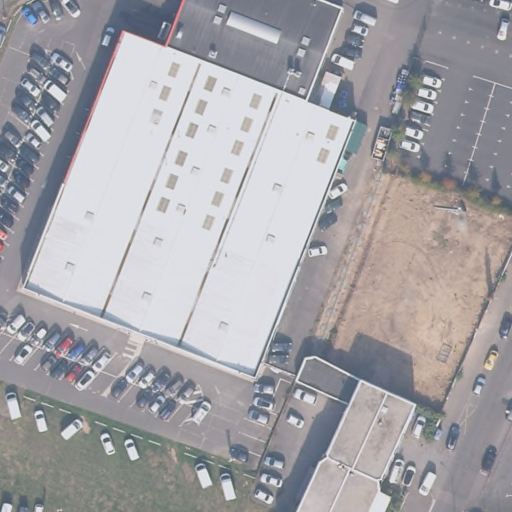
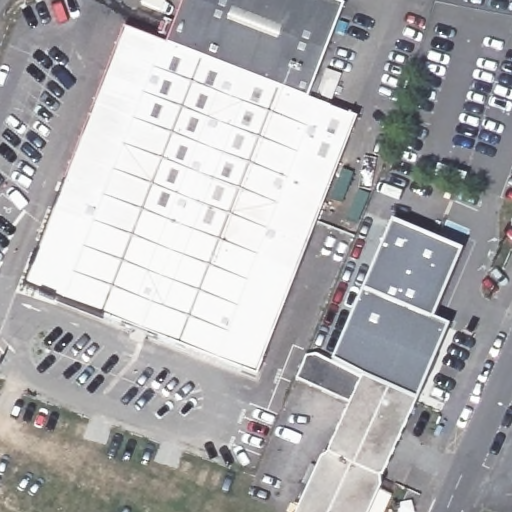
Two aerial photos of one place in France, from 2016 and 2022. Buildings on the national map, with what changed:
unchanged [(127,28),(169,46),(189,0),(315,0),(338,10),(348,15),(308,107),(357,127),(248,379),(183,351),(19,278),(127,28)]
demolished [(498,94),(499,94),(511,101),(503,117),(512,121),(512,168),(480,152),(489,133),(481,129),(467,121),(484,87),(498,94)]
demolished [(365,223),(367,237),(360,251),(343,244),(354,219),(365,223)]
new [(391,225),(461,253),(431,325),(446,330),(414,400),(333,365),(391,225)]
demolished [(340,252),(378,267),(372,278),(335,264),(340,252)]
demolished [(438,302),(460,312),(444,350),(446,358),(414,345),(417,337),(403,332),(419,293),(422,295),(438,302)]
unchanged [(404,425),(348,401),(288,377),(300,351),(414,400),(404,425)]
unchanged [(383,473),(327,451),(348,401),(404,425),(383,473)]
unchanged [(381,477),(375,481),(376,487),(365,512),(301,512),(327,451),(383,473),(381,477)]

